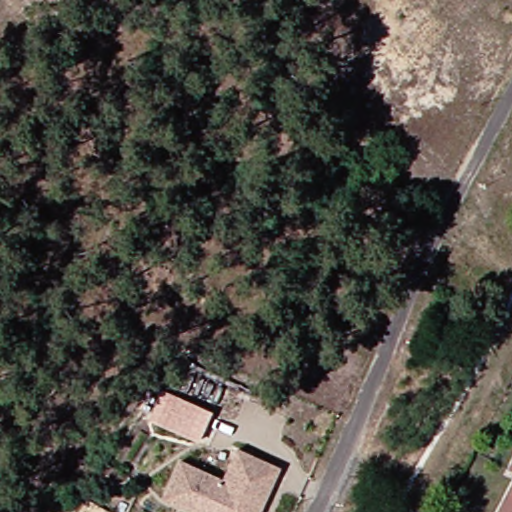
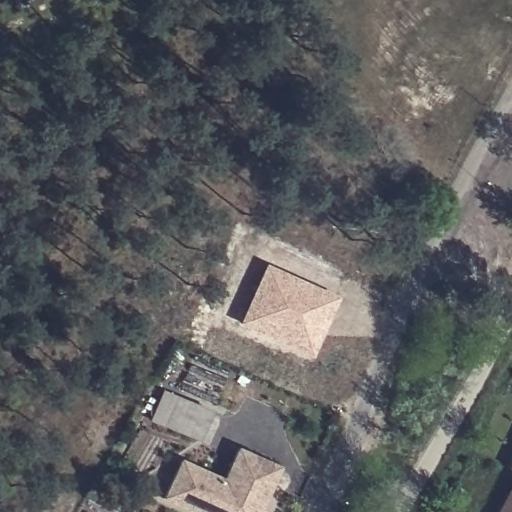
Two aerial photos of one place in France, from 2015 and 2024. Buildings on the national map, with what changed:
new [(311,359),(237,325),(264,264),(340,299),(311,359)]
unchanged [(215,411),(200,443),(149,420),(163,391),(215,411)]
unchanged [(512,449),(512,471),(503,467),(512,449)]
unchanged [(164,499),(180,462),(223,482),(237,450),(279,469),(262,506),(259,512),(191,512),(164,499)]
unchanged [(512,472),(512,512),(492,512),(512,472)]

